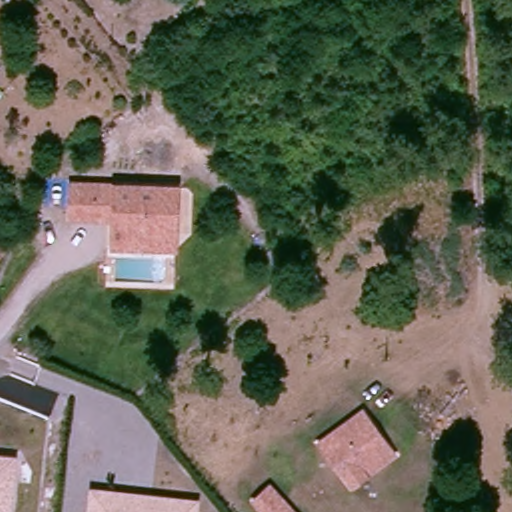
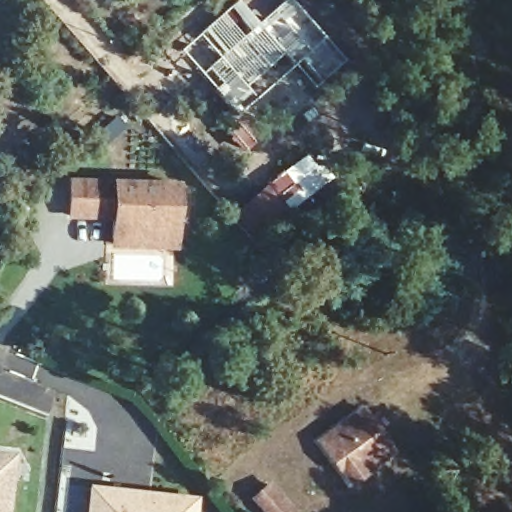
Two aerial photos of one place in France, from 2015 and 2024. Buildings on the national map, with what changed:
new [(199,74),(179,51),(196,34),(235,0),(239,0),(257,22),(293,67),(255,99),(235,116),(199,74)]
new [(282,0),(292,0),(325,37),(293,67),(257,22),(282,0)]
new [(325,37),(346,61),(313,89),(293,67),(325,37)]
new [(118,115),(129,128),(104,148),(92,133),(118,115)]
new [(306,153),(327,181),(286,212),(284,209),(283,207),(266,183),(306,153)]
unchanged [(73,179),(179,182),(177,248),(116,247),(112,219),(69,217),(73,179)]
new [(266,183),(283,207),(245,238),(226,214),(266,183)]
unchanged [(362,472),(347,482),(338,468),(336,469),(315,438),(362,407),(382,438),(392,453),(362,472)]
unchanged [(14,454),(9,512),(0,512),(0,452),(14,454)]
unchanged [(298,512),(263,512),(250,499),(270,481),(298,512)]
unchanged [(97,495),(95,512),(89,512),(92,488),(195,501),(194,512),(187,512),(188,507),(97,495)]
unchanged [(188,507),(187,512),(95,512),(97,495),(188,507)]

